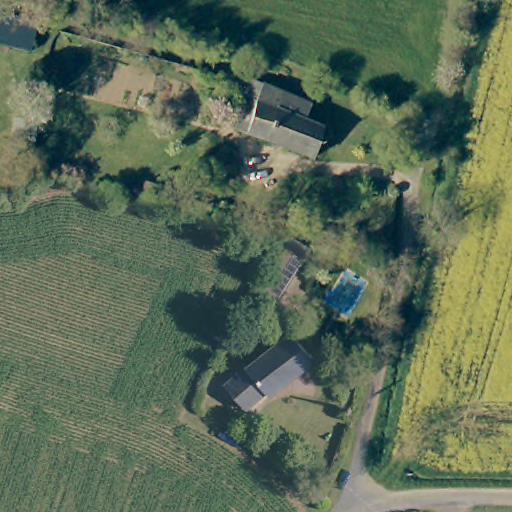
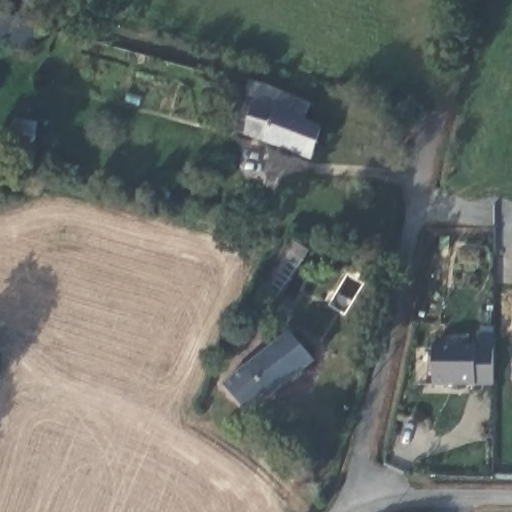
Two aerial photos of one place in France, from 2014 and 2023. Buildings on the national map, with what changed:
unchanged [(36,54),(0,44),(0,7),(45,19),(36,54)]
unchanged [(330,156),(244,138),(250,107),(254,89),(265,91),(316,101),(312,119),(336,123),(330,156)]
unchanged [(270,285),(288,241),(307,246),(287,299),(282,312),(261,305),(267,293),(270,285)]
unchanged [(287,380),(253,402),(252,402),(234,379),(295,334),(299,339),(315,359),(287,380)]
new [(433,345),(491,344),(493,384),(433,386),(433,345)]

